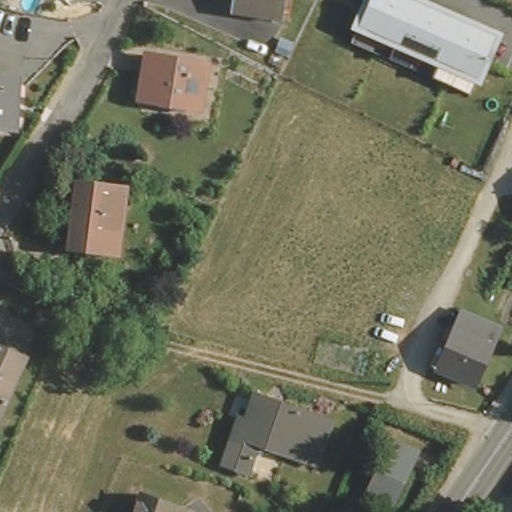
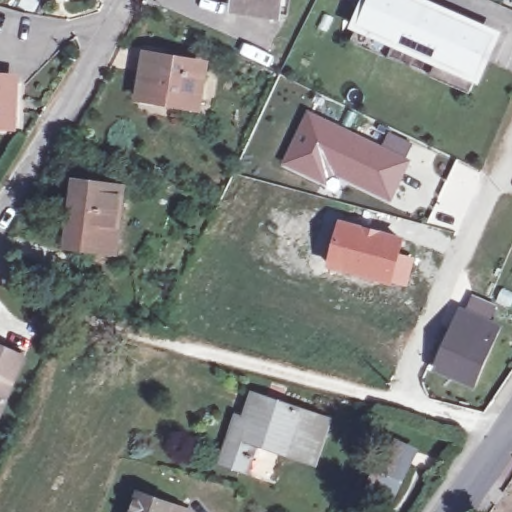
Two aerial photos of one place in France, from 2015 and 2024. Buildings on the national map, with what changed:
unchanged [(238,0),(279,0),(277,13),(237,6),(238,0)]
unchanged [(499,30),(477,85),(352,29),(362,0),(431,0),(499,30)]
unchanged [(150,55),(203,67),(195,108),(140,95),(150,55)]
unchanged [(17,80),(15,124),(0,122),(0,79),(17,80)]
new [(307,109),(382,144),(389,129),(415,140),(408,157),(412,159),(392,202),(332,175),(327,186),(280,165),(307,109)]
unchanged [(80,182),(125,189),(117,250),(72,244),(80,182)]
new [(339,218),(407,235),(402,253),(416,256),(407,288),(325,267),(339,218)]
unchanged [(472,387),(430,370),(458,303),(502,320),(472,387)]
unchanged [(22,362),(0,411),(0,353),(22,362)]
unchanged [(260,396),(333,423),(318,465),(260,444),(249,472),(223,462),(241,418),(250,421),(260,396)]
unchanged [(417,455),(390,512),(385,512),(365,502),(394,443),(417,455)]
unchanged [(185,508),(184,512),(134,512),(141,492),(185,508)]

